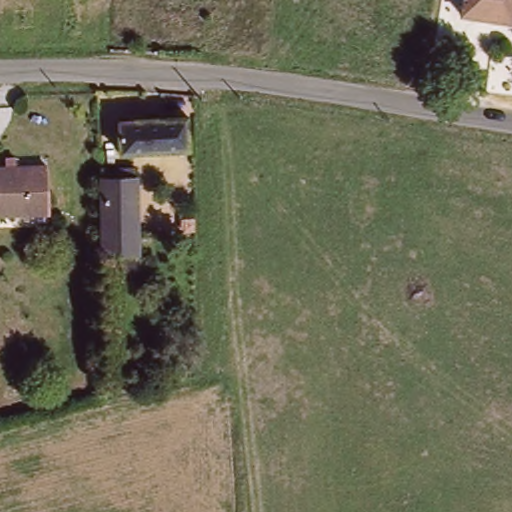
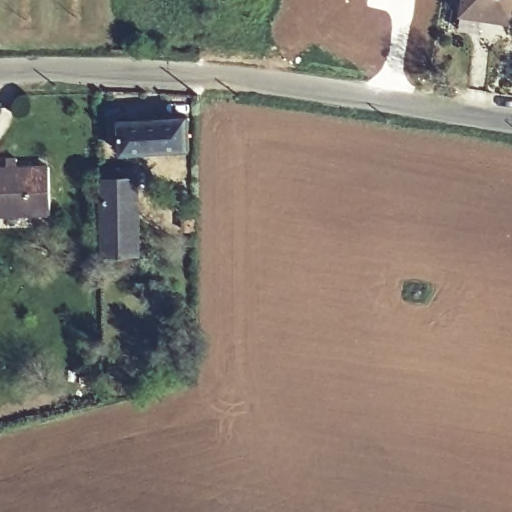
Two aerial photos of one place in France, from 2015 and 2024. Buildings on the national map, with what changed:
unchanged [(512,16),(464,10),(465,0),(512,0),(512,16)]
unchanged [(188,151),(123,153),(122,120),(188,119),(188,151)]
unchanged [(11,169),(10,156),(21,155),(21,165),(52,162),(55,210),(0,214),(0,169),(11,169)]
unchanged [(140,255),(105,256),(107,182),(107,176),(133,176),(133,183),(140,183),(140,255)]
unchanged [(182,214),(192,214),(192,227),(182,228),(182,214)]

